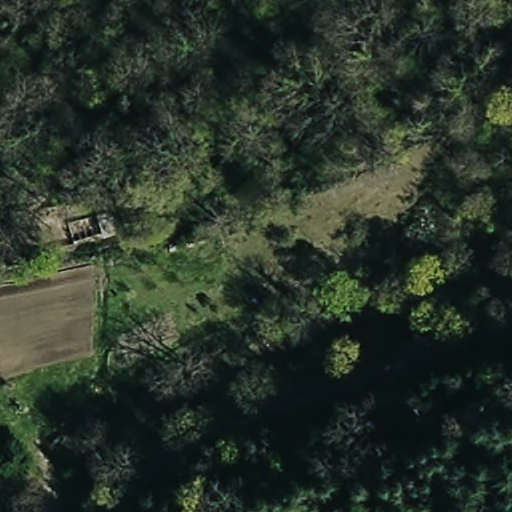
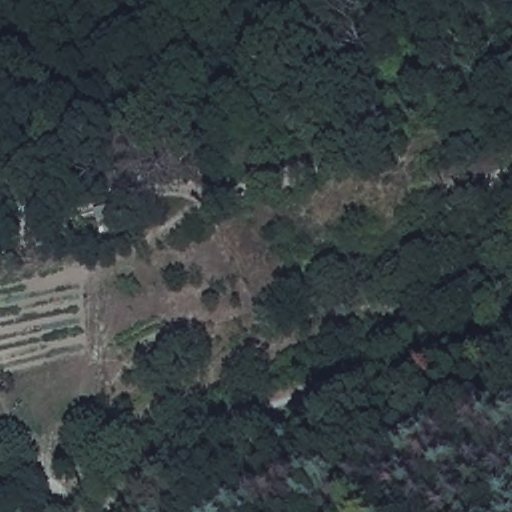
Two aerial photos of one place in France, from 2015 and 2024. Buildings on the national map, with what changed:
[]

